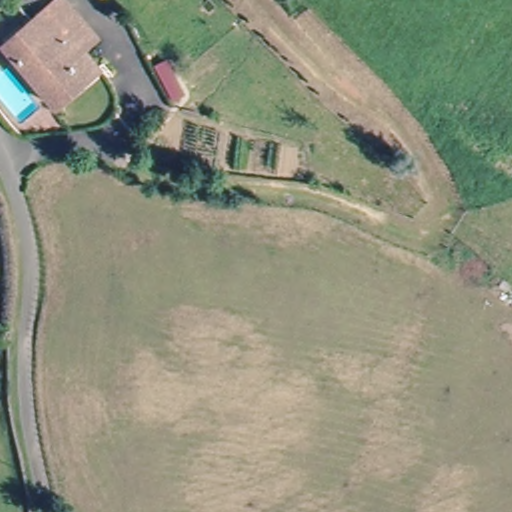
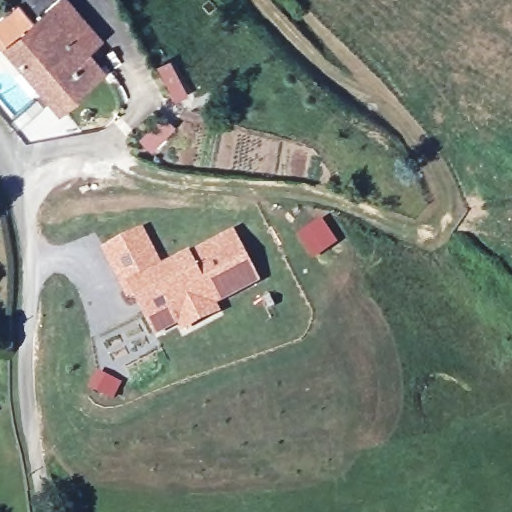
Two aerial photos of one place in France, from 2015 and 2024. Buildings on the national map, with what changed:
unchanged [(54,99),(8,39),(59,0),(72,0),(86,18),(101,38),(85,50),(101,70),(89,79),(57,104),(54,99)]
new [(160,112),(174,125),(150,151),(137,138),(160,112)]
new [(322,216),(339,241),(314,258),(297,234),(322,216)]
new [(144,226),(164,263),(234,229),(263,282),(219,306),(223,314),(182,335),(177,327),(157,338),(132,298),(128,299),(101,250),(144,226)]
new [(98,370),(124,382),(115,401),(89,388),(98,370)]

